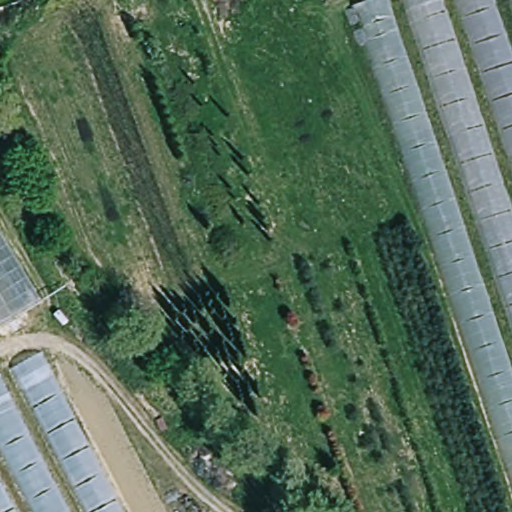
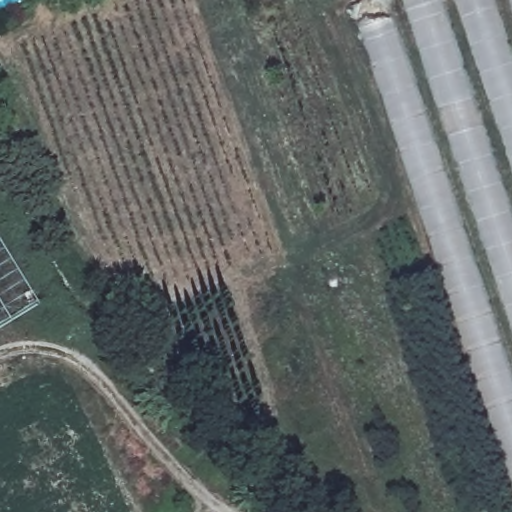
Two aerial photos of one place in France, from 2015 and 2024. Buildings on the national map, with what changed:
unchanged [(357,6),(374,0),(512,0),(512,476),(357,6)]
unchanged [(0,334),(0,207),(58,303),(0,334)]
demolished [(121,512),(0,512),(0,372),(40,352),(121,512)]

